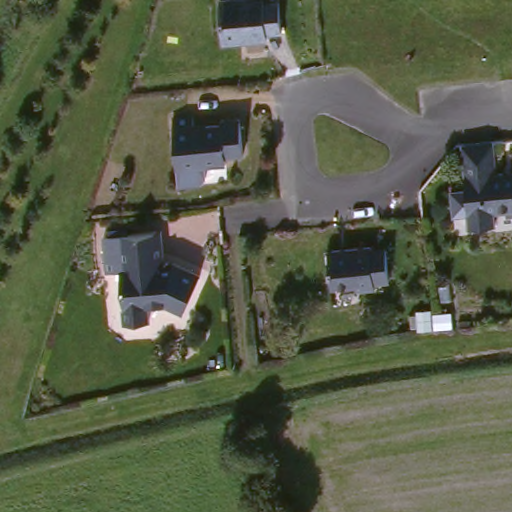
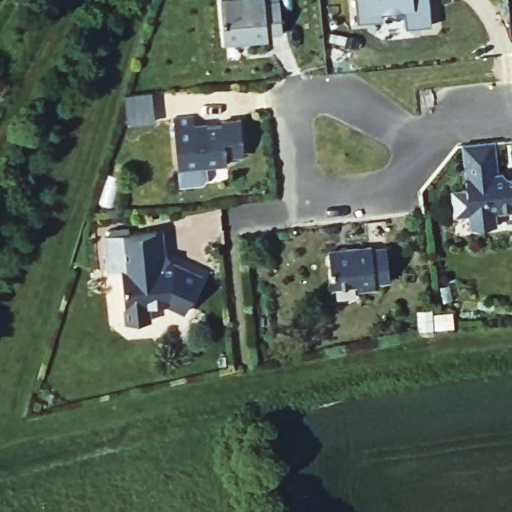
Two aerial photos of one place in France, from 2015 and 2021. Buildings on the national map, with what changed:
unchanged [(280,31),(269,31),(269,38),(224,42),(220,0),(279,0),(280,31)]
new [(431,27),(405,30),(403,10),(381,12),(381,21),(357,24),(354,0),(428,0),(431,27)]
unchanged [(195,125),(197,135),(224,132),(224,129),(244,127),(247,162),(228,164),(229,171),(179,176),(174,127),(195,125)]
unchanged [(493,138),(496,170),(512,168),(512,207),(493,209),(495,221),(490,221),(487,223),(476,224),(475,222),(469,223),(468,211),(453,212),(450,187),(466,186),(461,141),(493,138)]
unchanged [(160,259),(174,259),(201,270),(184,307),(170,301),(153,302),(153,318),(125,321),(120,267),(107,267),(104,233),(158,228),(160,259)]
unchanged [(372,248),(387,247),(390,281),(375,281),(375,286),(354,287),(354,284),(332,285),(330,250),(372,246),(372,248)]

